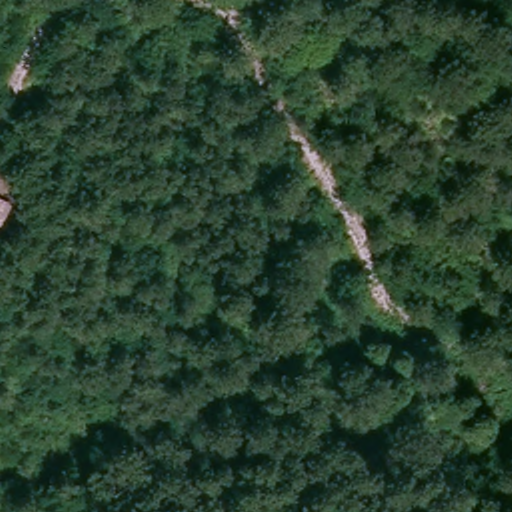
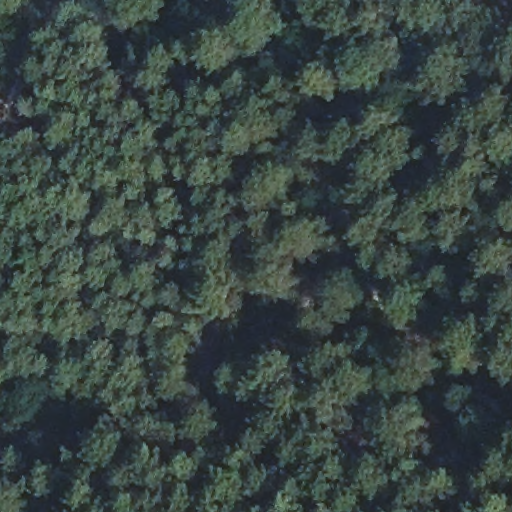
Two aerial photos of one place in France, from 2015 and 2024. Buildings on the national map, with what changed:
unchanged [(0,222),(0,194),(14,200),(3,223),(0,222)]

